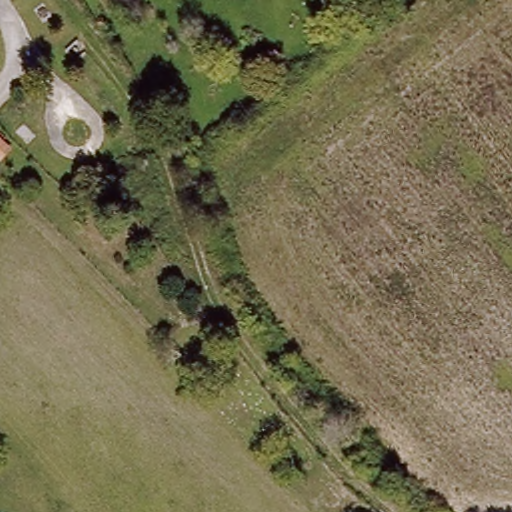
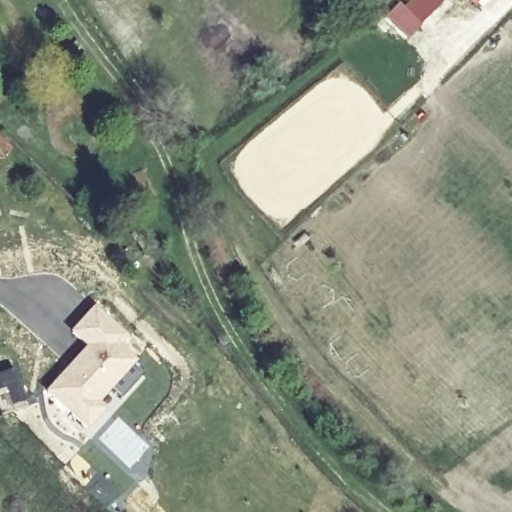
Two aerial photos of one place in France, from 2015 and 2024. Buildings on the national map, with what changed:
new [(397,4),(401,8),(409,0),(444,0),(407,38),(385,17),(397,4)]
new [(476,3),(473,0),(479,0),(476,3)]
unchanged [(0,160),(0,143),(9,151),(0,160)]
new [(128,394),(117,385),(101,403),(108,408),(91,427),(51,393),(87,353),(93,346),(77,332),(98,307),(130,335),(122,343),(140,359),(137,361),(148,371),(128,394)]

